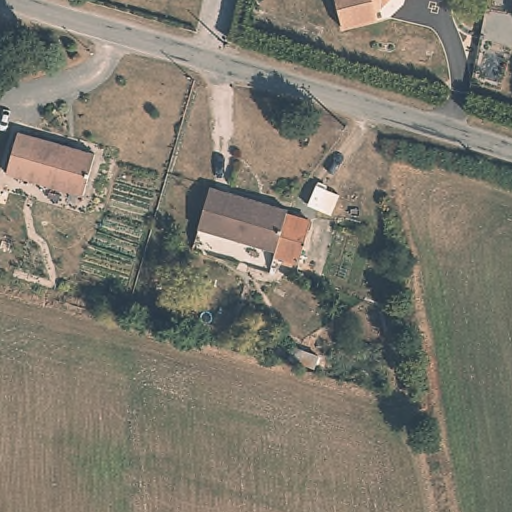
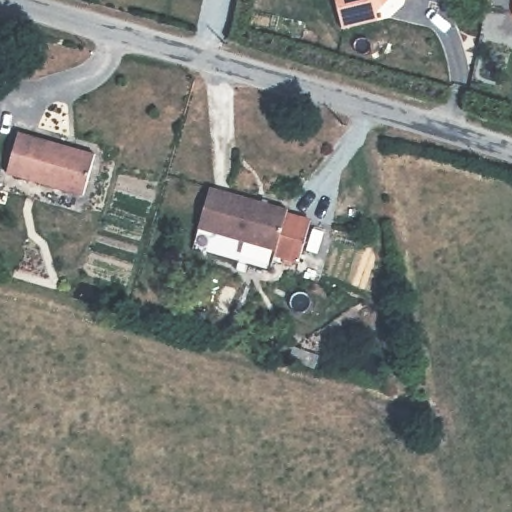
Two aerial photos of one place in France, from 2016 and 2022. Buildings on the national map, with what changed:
unchanged [(378,12),(379,21),(344,29),(337,0),(390,0),(378,12)]
unchanged [(511,21),(504,13),(507,3),(512,4),(512,21),(511,21)]
unchanged [(96,152),(84,194),(9,172),(21,130),(96,152)]
unchanged [(282,209),(281,212),(312,222),(298,268),(267,259),(271,248),(194,224),(206,185),(282,209)]

